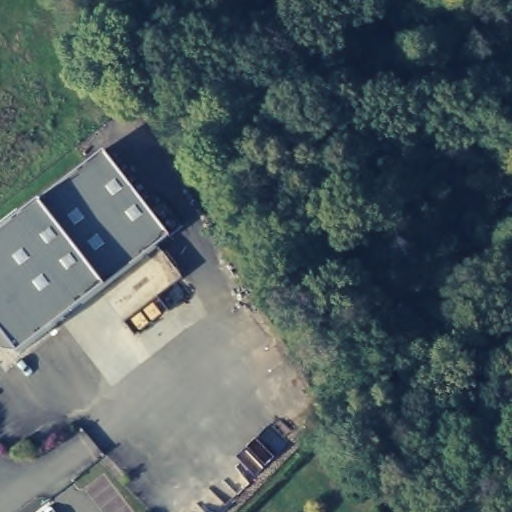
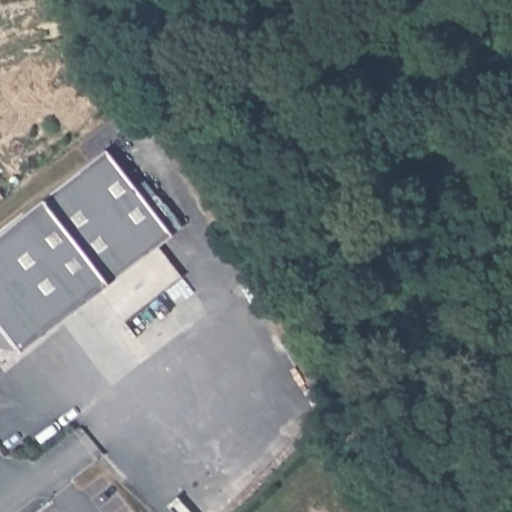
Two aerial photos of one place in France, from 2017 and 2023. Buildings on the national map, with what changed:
unchanged [(20,352),(0,351),(0,232),(40,201),(105,150),(153,214),(165,204),(183,226),(169,235),(105,285),(20,352)]

